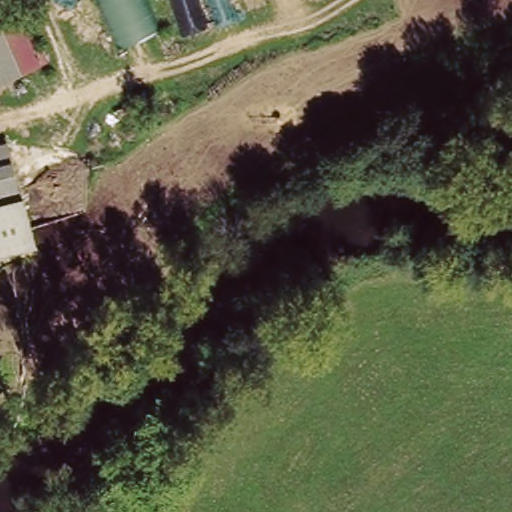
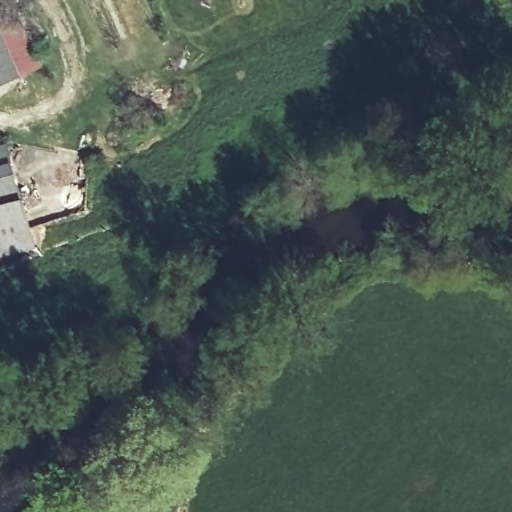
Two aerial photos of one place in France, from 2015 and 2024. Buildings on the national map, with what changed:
demolished [(105,0),(151,0),(166,33),(130,49),(105,0)]
unchanged [(0,29),(0,25),(19,17),(40,63),(19,74),(0,29)]
unchanged [(19,74),(0,82),(0,30),(19,74)]
unchanged [(13,140),(26,200),(0,207),(0,143),(13,140)]
unchanged [(38,241),(0,252),(0,207),(26,200),(38,241)]

